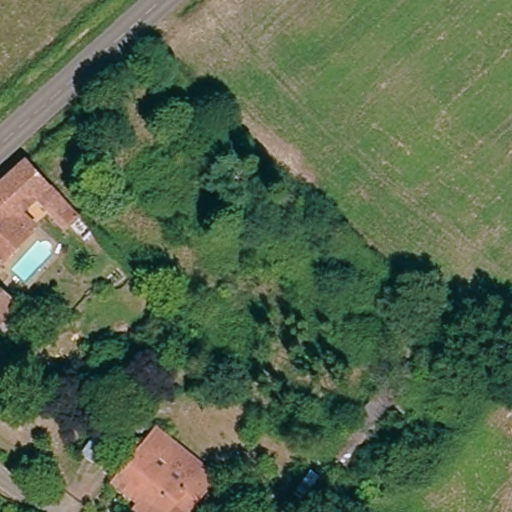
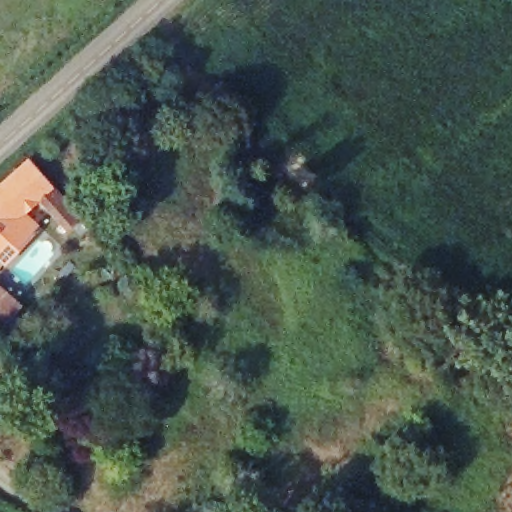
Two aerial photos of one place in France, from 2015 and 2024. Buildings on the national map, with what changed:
unchanged [(31,155),(83,211),(71,222),(51,201),(36,213),(45,221),(7,256),(0,249),(0,183),(31,155)]
unchanged [(0,321),(0,280),(22,303),(2,322),(0,321)]
unchanged [(316,450),(323,455),(404,364),(419,376),(322,485),(301,469),(316,450)]
demolished [(188,512),(149,512),(138,505),(144,499),(121,481),(163,427),(220,472),(188,512)]

